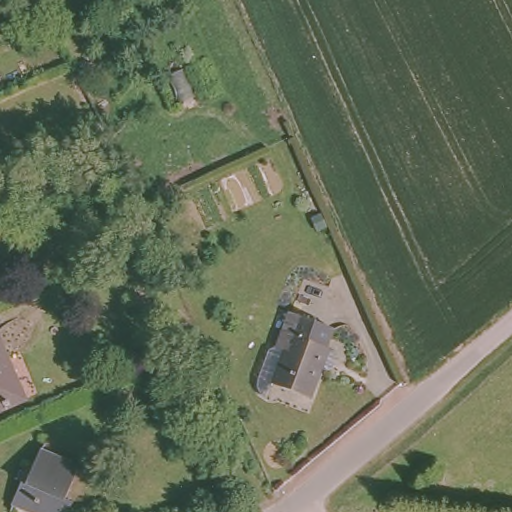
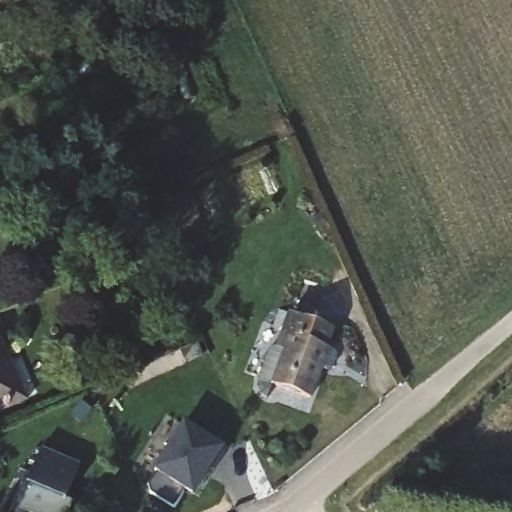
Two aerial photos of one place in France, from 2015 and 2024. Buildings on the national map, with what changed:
unchanged [(276,403),(272,400),(270,398),(268,394),(268,390),(268,385),(278,355),(285,352),(291,336),(297,317),(341,331),(335,350),(342,352),(343,356),(340,367),(337,368),(330,366),(332,369),(321,401),(283,389),(278,403),(276,403)]
unchanged [(27,397),(0,410),(0,339),(27,397)]
new [(225,451),(213,471),(208,468),(192,494),(155,470),(184,424),(225,451)]
unchanged [(82,461),(63,491),(70,496),(60,512),(23,512),(6,502),(12,492),(26,471),(30,472),(49,441),(82,461)]

